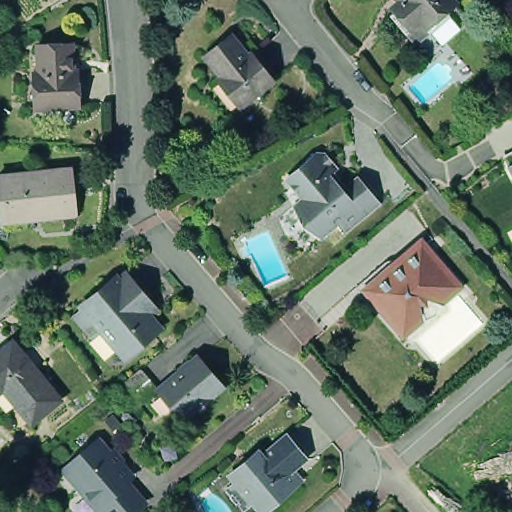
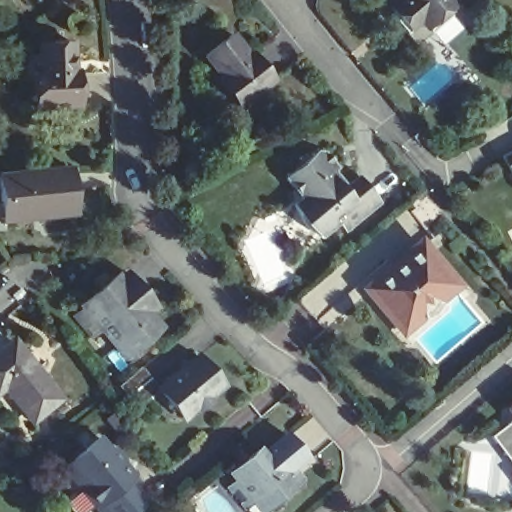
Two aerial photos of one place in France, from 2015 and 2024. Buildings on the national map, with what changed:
unchanged [(425,21),(420,16),(411,23),(391,1),(393,0),(451,0),(425,21)]
unchanged [(252,104),(230,76),(232,75),(215,54),(240,33),(257,54),(261,50),(284,78),(252,104)]
unchanged [(46,115),(45,81),(48,81),(48,53),(81,52),(83,80),(87,80),(90,113),(46,115)]
unchanged [(310,245),(288,212),(295,206),(281,181),(313,154),(332,184),(351,176),(365,205),(310,245)]
unchanged [(512,195),(501,171),(512,165),(512,195)]
unchanged [(81,216),(10,224),(8,205),(5,206),(2,180),(76,173),(81,216)]
unchanged [(415,244),(452,291),(397,342),(361,290),(415,244)]
unchanged [(114,366),(88,336),(91,333),(73,313),(82,305),(80,302),(115,273),(117,277),(125,271),(145,295),(154,304),(146,311),(160,325),(139,342),(143,347),(121,366),(114,366)]
unchanged [(37,414),(8,380),(0,386),(0,348),(15,335),(63,392),(37,414)]
unchanged [(152,394),(140,405),(131,395),(121,383),(145,364),(155,376),(163,386),(202,353),(227,383),(215,394),(217,397),(205,407),(202,405),(187,416),(183,421),(173,420),(152,394)]
new [(512,404),(512,417),(506,409),(512,404)]
new [(512,418),(512,464),(492,436),(512,418)]
unchanged [(248,501),(233,483),(240,477),(234,470),(244,461),(262,445),(265,450),(288,431),(308,454),(292,468),(300,477),(266,507),(260,512),(249,512),(243,505),(248,501)]
unchanged [(93,511),(70,482),(61,471),(70,464),(94,443),(106,458),(112,453),(119,461),(120,467),(130,482),(126,485),(143,506),(136,512),(101,512),(97,508),(93,511)]

